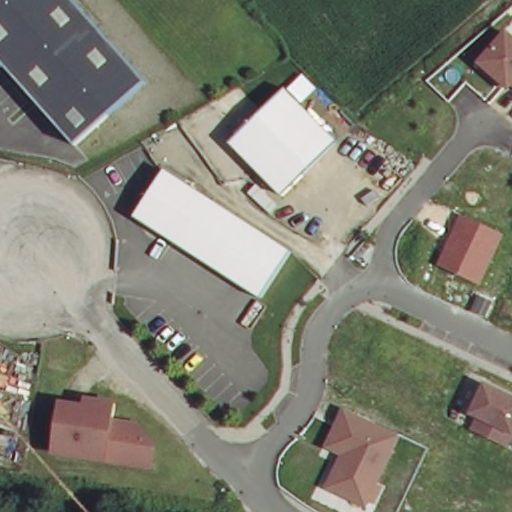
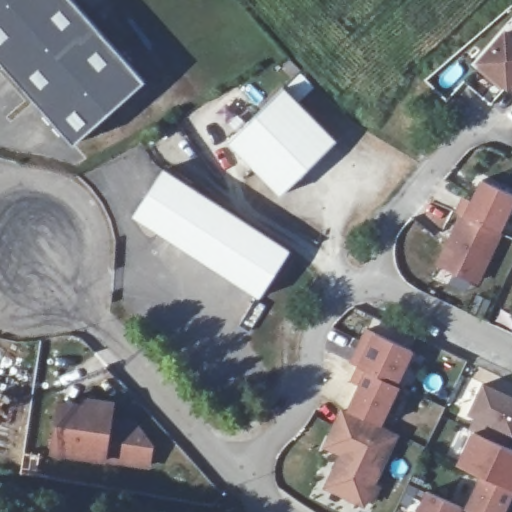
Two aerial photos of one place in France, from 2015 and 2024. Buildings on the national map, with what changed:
unchanged [(79,3),(131,61),(149,80),(78,145),(57,121),(4,64),(0,59),(0,0),(76,0),(79,3)]
unchanged [(505,92),(472,62),(503,29),(512,36),(512,89),(510,88),(505,92)]
unchanged [(283,197),(232,142),(287,84),(343,144),(283,197)]
unchanged [(171,165),(172,164),(240,220),(288,259),(275,275),(253,302),(200,257),(137,206),(171,165)]
new [(463,195),(470,199),(480,178),(512,193),(512,205),(500,231),(462,213),(457,208),(463,195)]
unchanged [(462,213),(504,232),(481,283),(438,264),(462,213)]
new [(358,385),(349,380),(356,366),(350,362),(365,327),(374,331),(413,349),(395,385),(400,386),(380,426),(348,408),(358,385)]
unchanged [(512,395),(512,438),(509,445),(472,429),(479,417),(469,412),(483,382),(512,395)]
unchanged [(62,406),(86,410),(87,402),(115,406),(113,423),(138,427),(155,449),(152,469),(55,456),(62,406)]
unchanged [(326,489),(343,457),(326,447),(345,407),(399,436),(367,508),(326,489)]
new [(457,463),(472,429),(509,445),(512,446),(512,496),(504,512),(475,512),(470,510),(469,512),(414,512),(425,488),(464,507),(480,473),(457,463)]

